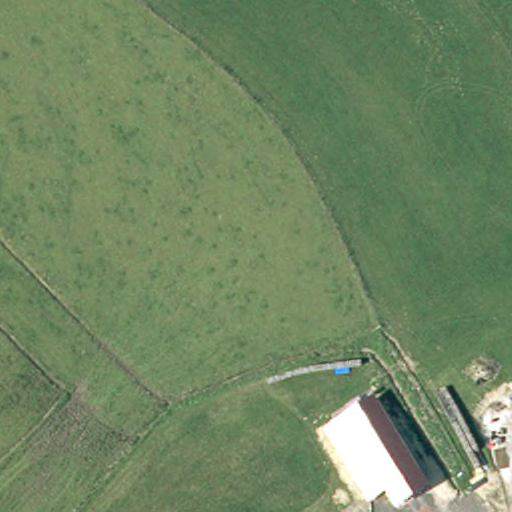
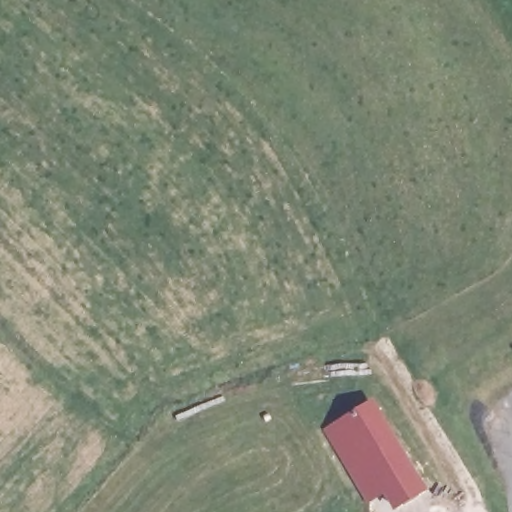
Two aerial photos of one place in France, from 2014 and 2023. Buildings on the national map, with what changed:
unchanged [(323,428),(373,398),(426,491),(392,510),(383,495),(367,505),(323,428)]

